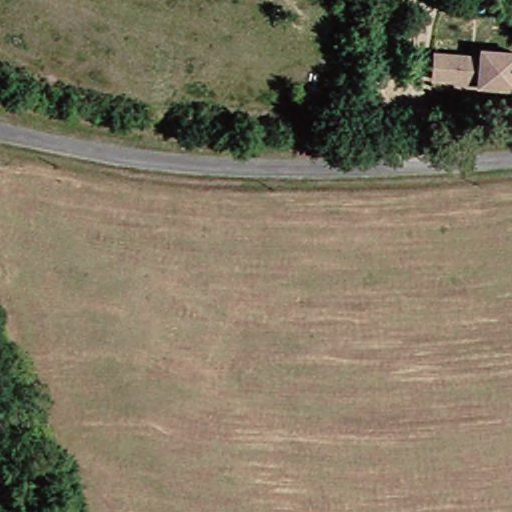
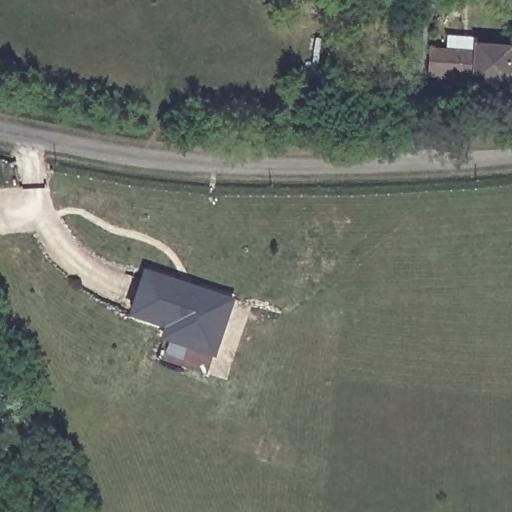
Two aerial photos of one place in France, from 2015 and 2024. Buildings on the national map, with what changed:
unchanged [(445,79),(422,79),(423,50),(468,52),(468,46),(503,47),(501,85),(467,84),(446,85),(445,79)]
new [(166,339),(169,327),(134,317),(148,273),(233,302),(222,335),(214,356),(166,339)]

